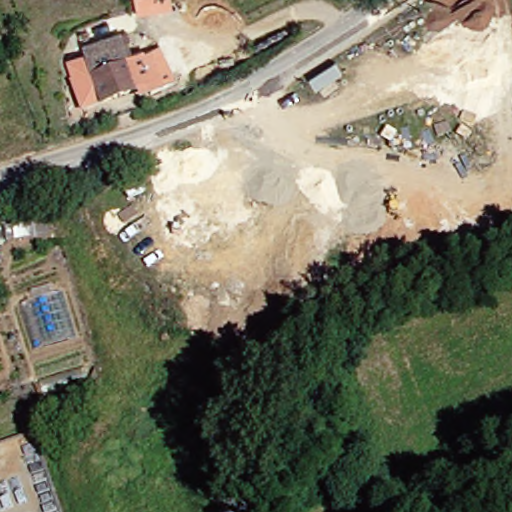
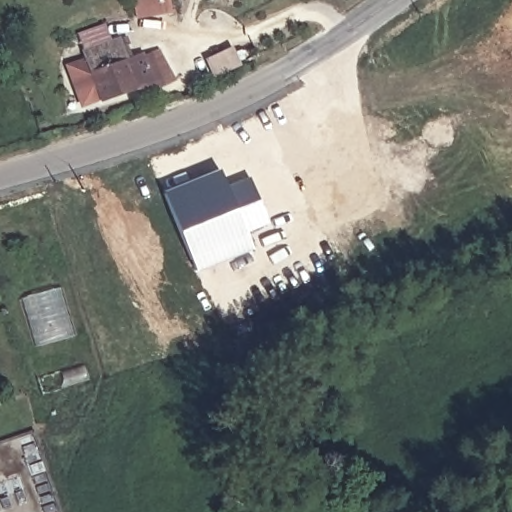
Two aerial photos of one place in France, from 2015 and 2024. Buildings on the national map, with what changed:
unchanged [(180,0),(180,1),(147,14),(142,0),(180,0)]
unchanged [(125,42),(128,40),(130,45),(127,48),(131,58),(145,53),(160,46),(182,81),(164,89),(153,94),(150,85),(85,105),(72,66),(90,59),(88,51),(123,39),(125,42)]
new [(219,171),(227,187),(248,179),(267,225),(246,234),(252,251),(195,273),(162,193),(219,171)]
new [(23,299),(61,288),(75,337),(38,346),(23,299)]

